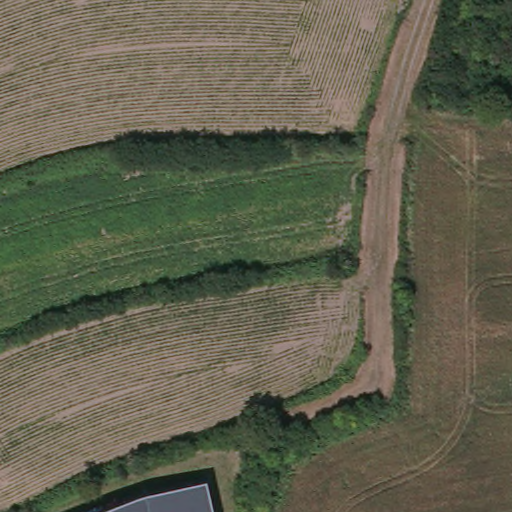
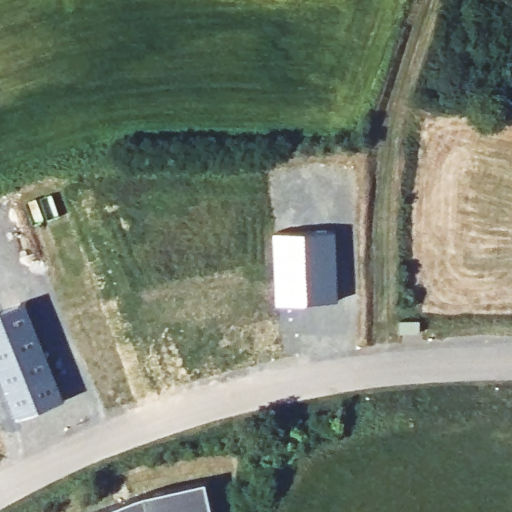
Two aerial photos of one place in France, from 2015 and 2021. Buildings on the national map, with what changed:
new [(333,233),(337,303),(277,306),(273,235),(333,233)]
new [(23,306),(63,404),(17,423),(0,381),(0,316),(23,306)]
new [(400,323),(420,323),(420,334),(400,335),(400,323)]
unchanged [(145,493),(206,480),(214,512),(95,512),(145,493)]

